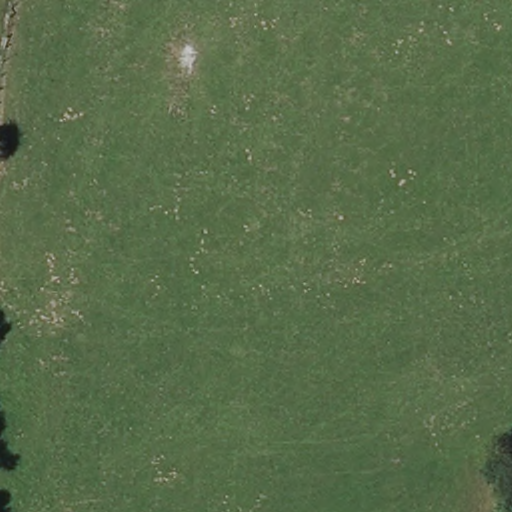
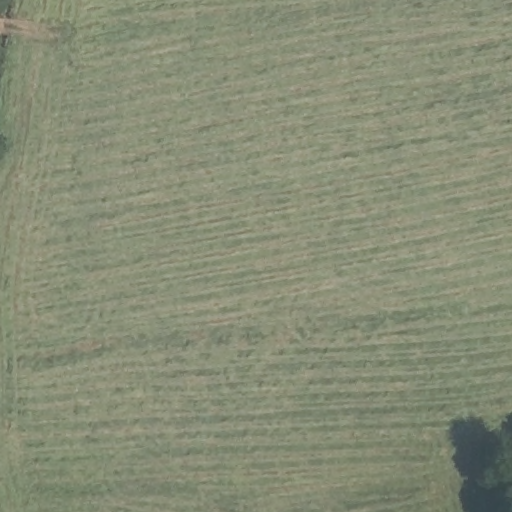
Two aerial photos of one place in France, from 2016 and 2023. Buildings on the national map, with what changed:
[]

